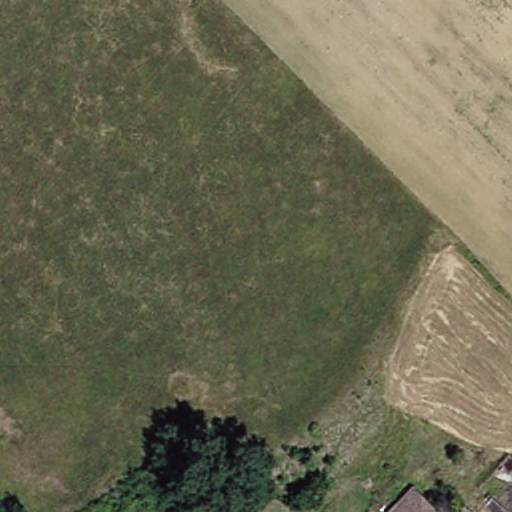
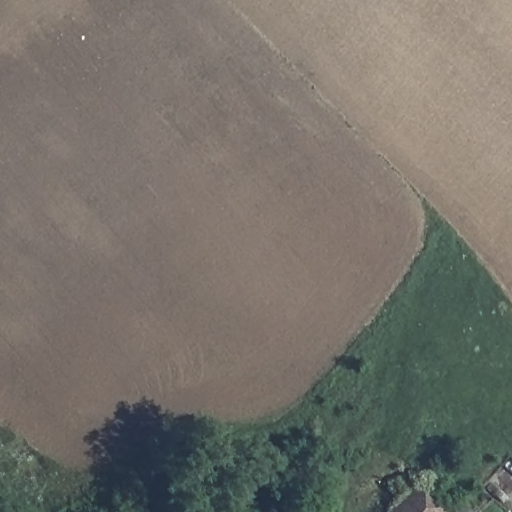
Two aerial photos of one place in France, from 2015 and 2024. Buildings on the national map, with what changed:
unchanged [(413,484),(436,512),(385,512),(413,484)]
unchanged [(454,508),(457,512),(451,512),(454,508)]

